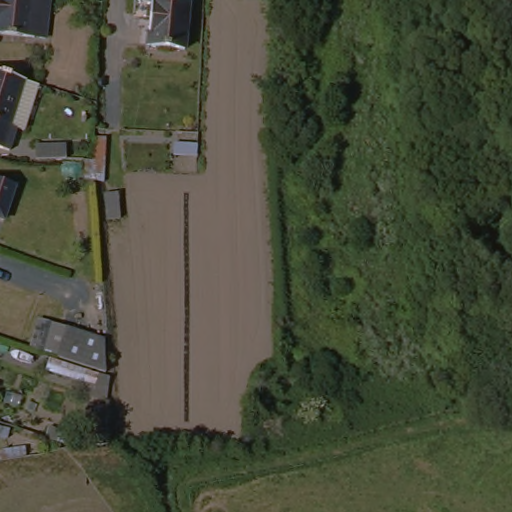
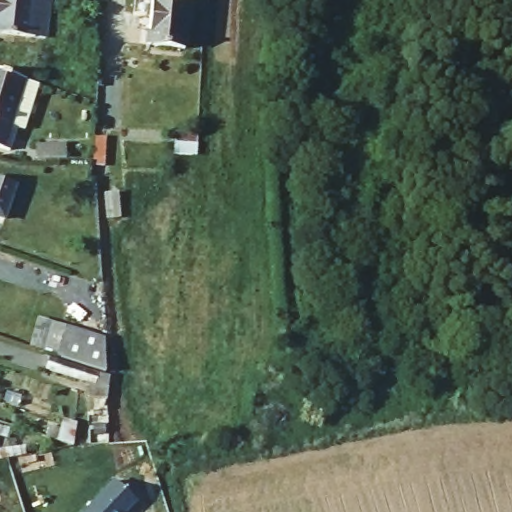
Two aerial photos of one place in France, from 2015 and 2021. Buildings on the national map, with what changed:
unchanged [(52,0),(48,36),(0,29),(0,12),(1,0),(52,0)]
unchanged [(167,0),(193,8),(184,54),(142,41),(150,0),(167,0)]
unchanged [(24,79),(34,81),(20,125),(11,121),(1,153),(0,153),(0,70),(8,73),(24,79)]
unchanged [(19,146),(50,146),(51,160),(19,159),(19,146)]
unchanged [(10,215),(0,213),(0,170),(18,174),(10,215)]
unchanged [(103,205),(130,199),(137,230),(111,236),(103,205)]
unchanged [(108,341),(104,370),(116,374),(110,405),(89,400),(89,386),(51,374),(56,358),(33,350),(43,318),(108,341)]
new [(137,505),(131,512),(84,512),(113,481),(137,505)]

